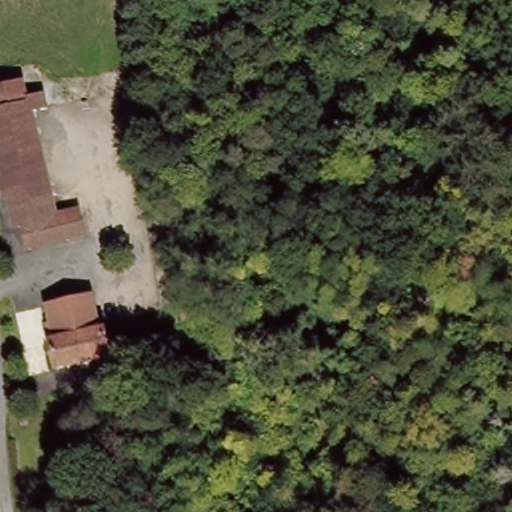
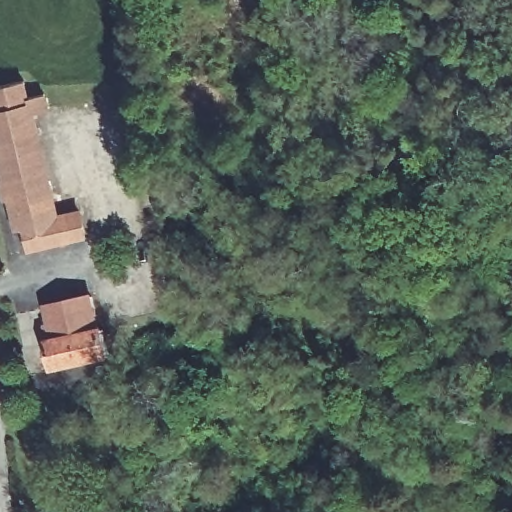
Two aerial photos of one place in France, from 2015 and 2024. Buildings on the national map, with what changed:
unchanged [(0,111),(0,95),(1,94),(0,91),(0,69),(27,59),(33,76),(47,72),(52,84),(38,91),(46,120),(8,137),(0,111)]
unchanged [(8,137),(46,120),(68,193),(33,209),(29,210),(6,137),(8,137)]
unchanged [(40,238),(33,209),(68,193),(89,191),(97,204),(100,218),(40,238)]
unchanged [(126,347),(67,369),(57,340),(69,333),(60,305),(97,294),(107,321),(118,316),(123,332),(126,347)]

